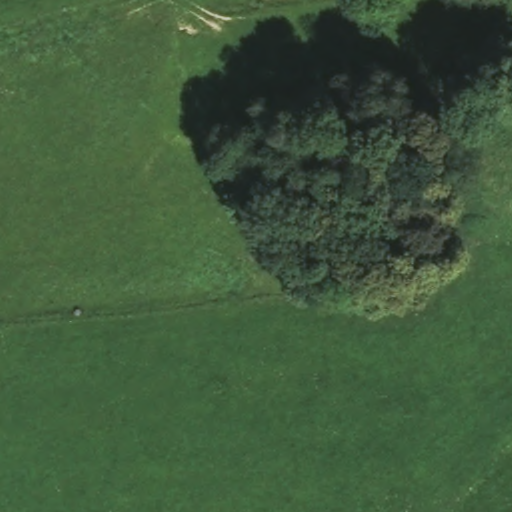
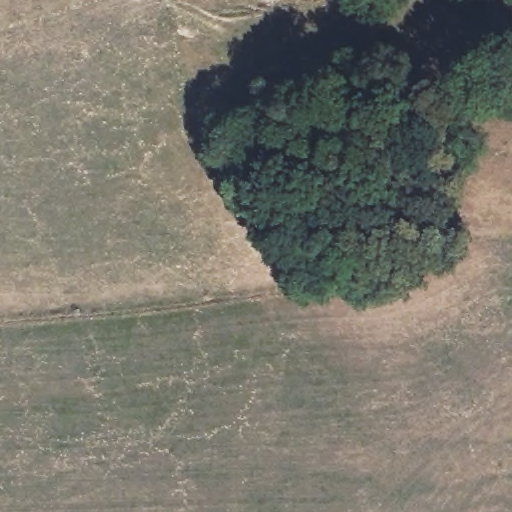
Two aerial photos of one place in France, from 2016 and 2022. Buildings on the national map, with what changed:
[]

